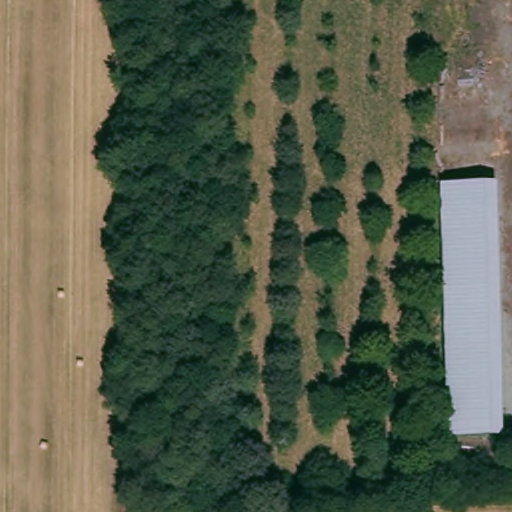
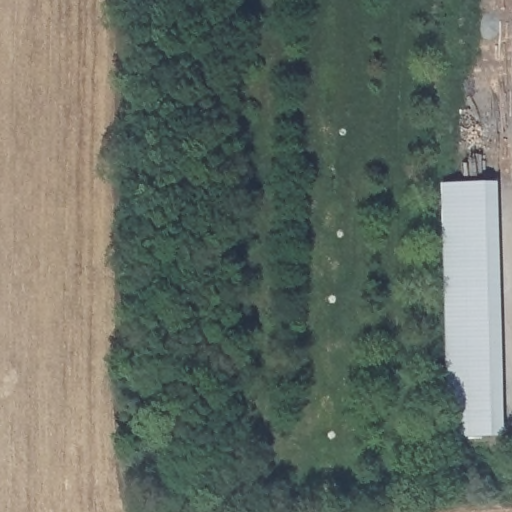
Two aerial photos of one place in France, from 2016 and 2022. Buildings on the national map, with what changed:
unchanged [(499,179),(502,441),(451,443),(447,180),(499,179)]

